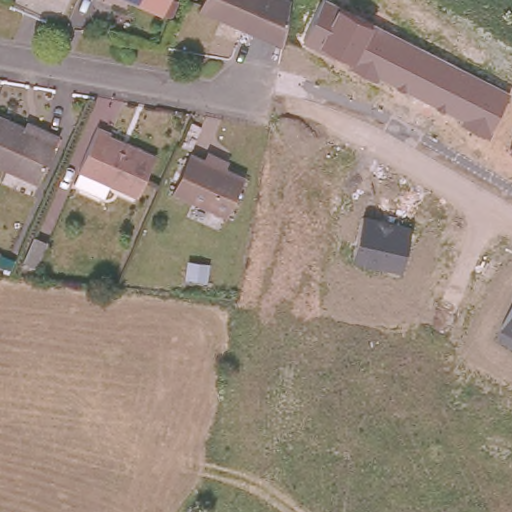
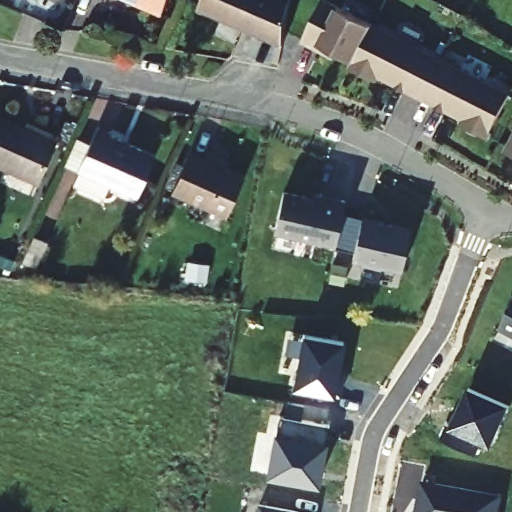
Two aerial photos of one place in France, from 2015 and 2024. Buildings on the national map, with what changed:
unchanged [(288,19),(283,47),(199,10),(204,0),(290,0),(291,0),(288,19)]
unchanged [(319,0),(333,0),(510,89),(487,135),(300,40),(319,0)]
unchanged [(26,124),(45,132),(59,138),(39,183),(0,166),(0,118),(24,129),(26,124)]
unchanged [(112,132),(110,136),(155,156),(138,195),(78,170),(98,126),(112,132)]
unchanged [(512,155),(505,151),(512,139),(512,155)]
unchanged [(208,156),(221,162),(227,165),(225,170),(245,179),(227,216),(172,192),(190,155),(205,161),(208,156)]
new [(316,197),(317,192),(346,200),(335,245),(275,234),(285,190),(316,197)]
new [(343,212),(363,216),(356,249),(335,245),(343,212)]
unchanged [(415,225),(404,271),(353,259),(364,212),(415,225)]
unchanged [(48,242),(36,267),(22,261),(33,236),(48,242)]
unchanged [(15,260),(10,270),(0,266),(0,253),(15,260)]
unchanged [(512,306),(512,332),(501,326),(512,306)]
new [(345,340),(335,395),(295,387),(305,333),(345,340)]
new [(450,425),(454,427),(471,388),(510,406),(493,444),(483,440),(477,455),(443,440),(450,425)]
new [(303,405),(300,420),(328,425),(325,441),(328,441),(320,487),(266,477),(275,431),(277,431),(280,416),(282,416),(286,402),(303,405)]
new [(421,479),(502,495),(498,512),(415,512),(421,479)]
new [(311,512),(257,512),(258,503),(311,512)]

